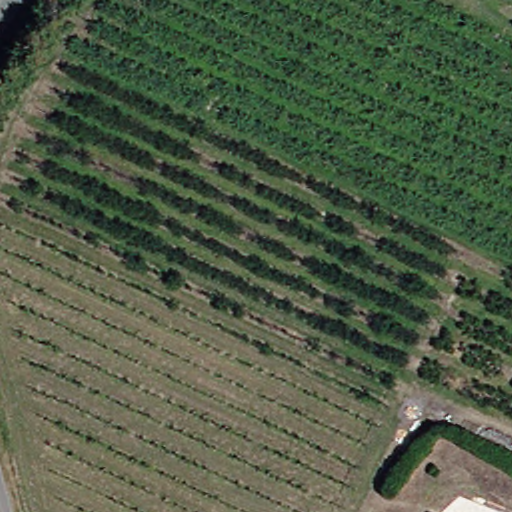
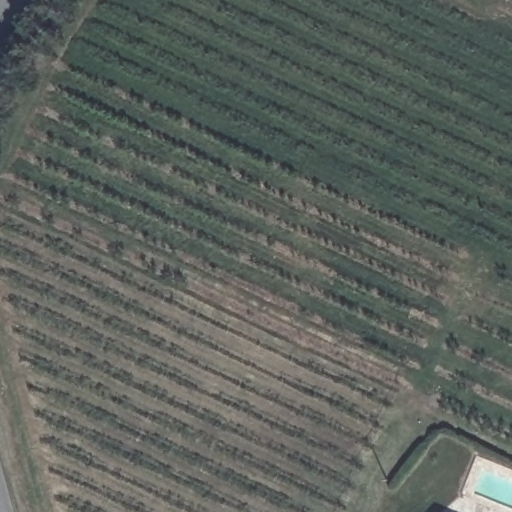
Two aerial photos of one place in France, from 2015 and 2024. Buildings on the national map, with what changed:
[]

